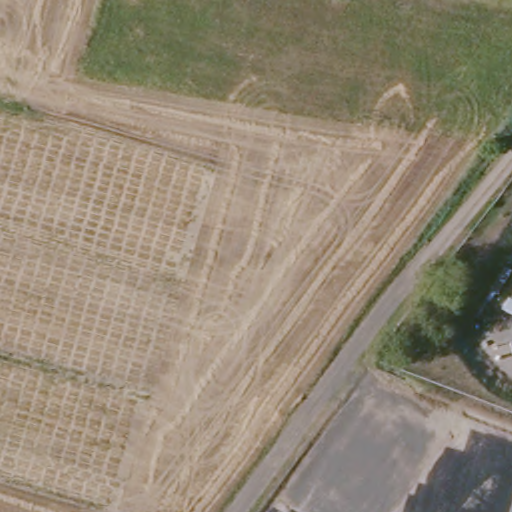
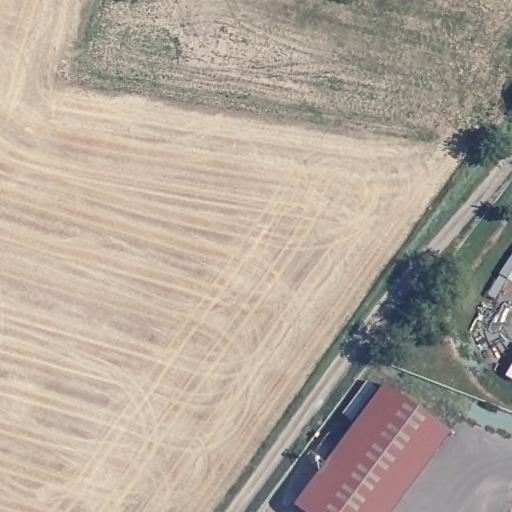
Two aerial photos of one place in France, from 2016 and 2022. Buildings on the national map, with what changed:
new [(383,386),(449,435),(391,512),(302,512),(294,506),(383,386)]

